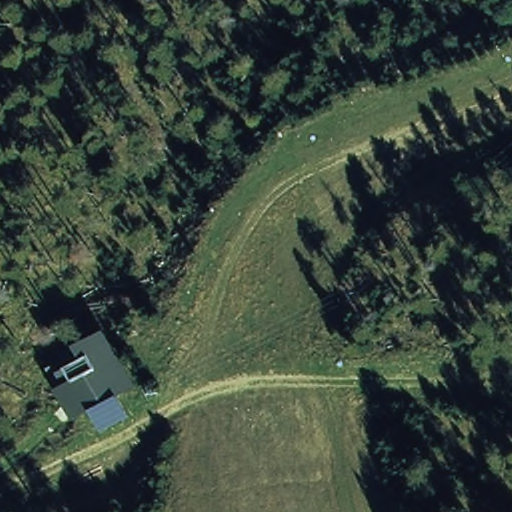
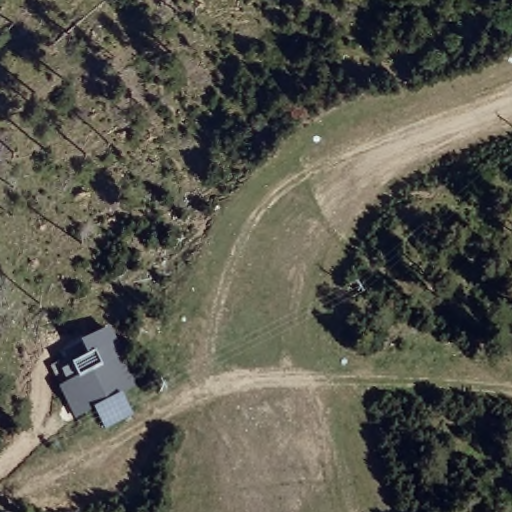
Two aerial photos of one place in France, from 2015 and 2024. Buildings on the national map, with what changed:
unchanged [(112,328),(139,387),(121,396),(130,414),(98,432),(95,422),(77,429),(61,387),(75,380),(66,362),(83,354),(77,342),(112,328)]

